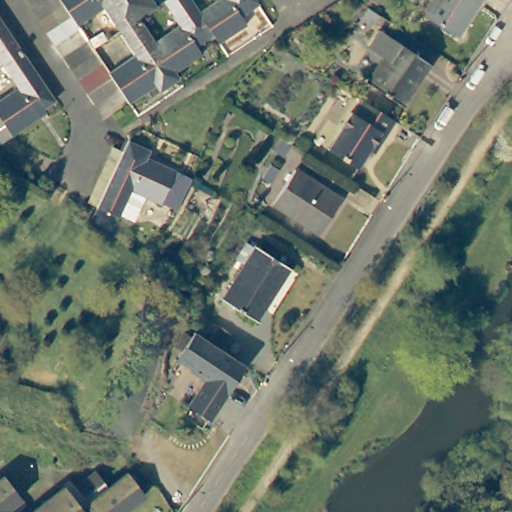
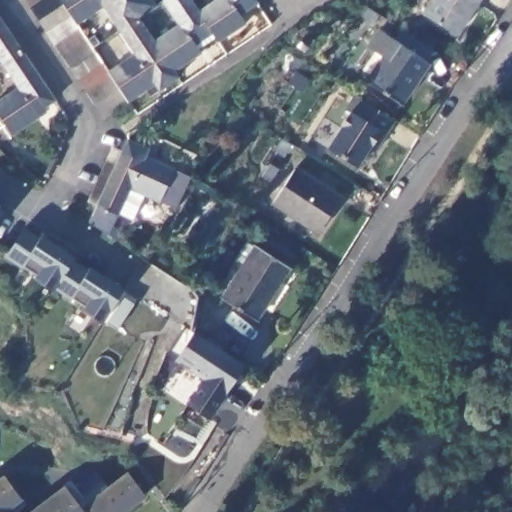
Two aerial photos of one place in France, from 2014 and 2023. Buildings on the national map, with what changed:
unchanged [(54,44),(45,31),(38,20),(30,7),(25,0),(126,0),(138,16),(154,41),(174,70),(178,76),(160,87),(155,82),(128,100),(102,117),(95,106),(86,93),(78,81),(70,69),(61,56),(54,44)]
unchanged [(126,0),(151,0),(155,5),(138,16),(126,0)]
unchanged [(154,41),(181,24),(164,0),(192,0),(200,11),(212,29),(193,41),(201,53),(174,70),(154,41)]
unchanged [(239,11),(247,22),(220,40),(212,29),(200,11),(216,0),(255,0),(239,11)]
unchanged [(456,37),(423,17),(434,0),(481,0),(456,37)]
unchanged [(0,19),(20,49),(2,60),(0,58),(0,19)]
unchanged [(399,102),(365,80),(391,39),(425,61),(399,102)]
unchanged [(2,60),(20,49),(54,98),(36,110),(38,115),(11,133),(0,140),(0,98),(19,85),(2,60)]
unchanged [(391,119),(373,151),(367,149),(356,168),(326,150),(349,110),(355,114),(364,101),(391,119)]
unchanged [(144,154),(176,166),(163,200),(131,187),(120,215),(99,206),(90,202),(111,146),(122,150),(126,140),(147,146),(144,154)]
unchanged [(319,234),(273,206),(293,172),(339,200),(319,234)]
new [(0,210),(2,211),(0,214),(0,210)]
new [(104,320),(84,307),(70,300),(55,289),(35,275),(4,256),(23,227),(39,239),(41,235),(76,256),(75,262),(86,268),(90,267),(121,288),(104,320)]
unchanged [(255,322),(223,302),(243,268),(236,264),(247,246),(254,251),(255,250),(287,270),(255,322)]
unchanged [(186,405),(202,379),(174,360),(194,330),(245,365),(211,419),(186,405)]
unchanged [(42,501),(68,481),(73,486),(94,470),(101,480),(74,501),(82,512),(40,512),(41,503),(42,501)]
unchanged [(120,512),(90,512),(84,504),(126,472),(142,495),(120,512)]
unchanged [(23,504),(14,511),(10,505),(1,512),(0,512),(0,477),(1,475),(23,504)]
unchanged [(41,503),(40,512),(28,512),(42,501),(41,503)]

